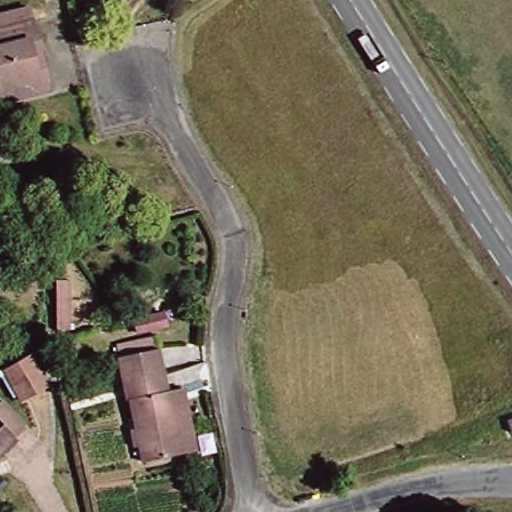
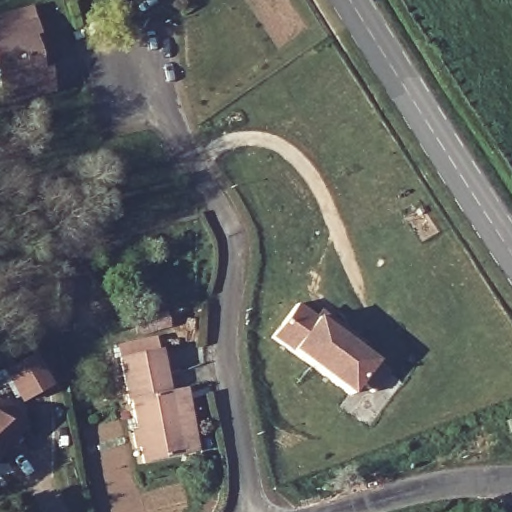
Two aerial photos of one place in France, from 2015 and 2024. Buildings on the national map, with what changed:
unchanged [(0,91),(0,13),(28,4),(33,22),(53,88),(3,102),(0,91)]
unchanged [(68,215),(71,229),(48,234),(45,220),(68,215)]
unchanged [(41,323),(42,282),(57,282),(55,323),(41,323)]
new [(317,317),(390,370),(375,392),(362,385),(353,396),(293,355),(271,338),(295,304),(317,317)]
unchanged [(168,310),(171,323),(143,330),(139,316),(168,310)]
unchanged [(148,459),(143,441),(135,443),(132,430),(138,428),(128,396),(120,360),(116,347),(153,336),(157,350),(170,386),(180,382),(198,446),(188,449),(148,459)]
unchanged [(46,382),(21,398),(1,365),(26,350),(46,382)]
unchanged [(28,420),(15,432),(19,437),(0,455),(0,406),(6,399),(28,420)]

